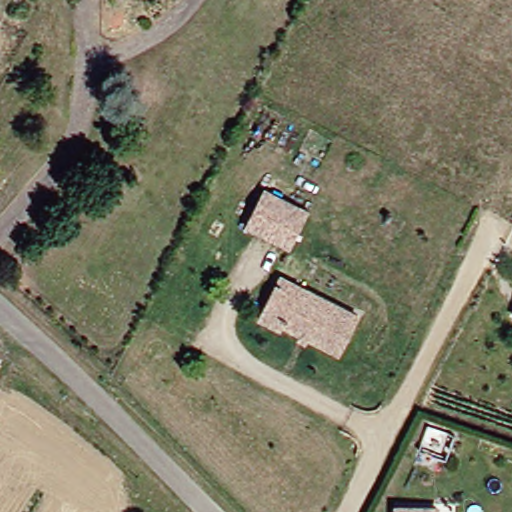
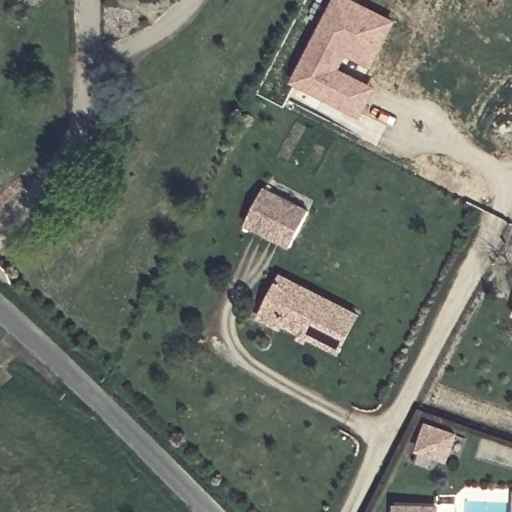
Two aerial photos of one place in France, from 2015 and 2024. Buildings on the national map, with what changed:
new [(398,20),(373,69),(348,57),(343,68),(379,87),(363,118),(292,82),(334,0),(358,0),(398,20)]
unchanged [(285,248),(244,226),(263,190),(305,213),(285,248)]
unchanged [(261,315),(281,277),(357,318),(337,355),(279,324),(275,331),(257,320),(261,315)]
unchanged [(512,305),(512,313),(508,311),(512,305)]
new [(428,429),(451,438),(443,461),(419,453),(428,429)]
unchanged [(400,509),(436,511),(436,512),(393,512),(393,509),(400,509)]

